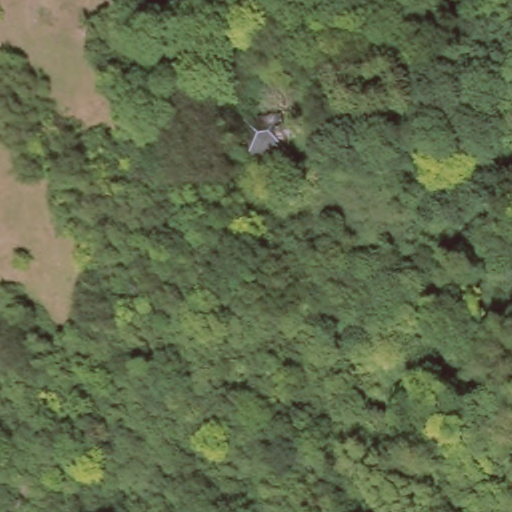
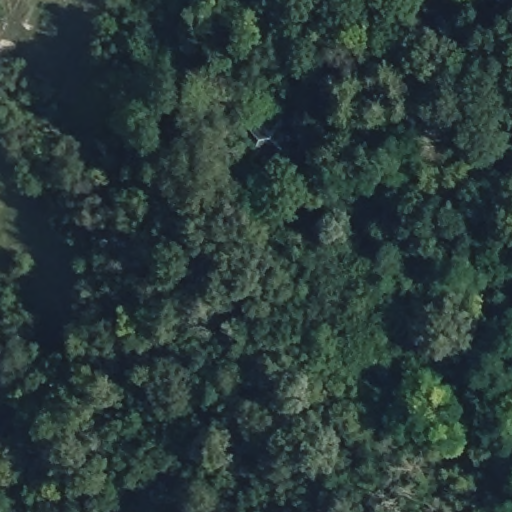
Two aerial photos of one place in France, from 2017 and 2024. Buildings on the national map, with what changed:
unchanged [(274,144),(243,149),(239,117),(269,113),(272,136),(274,144)]

